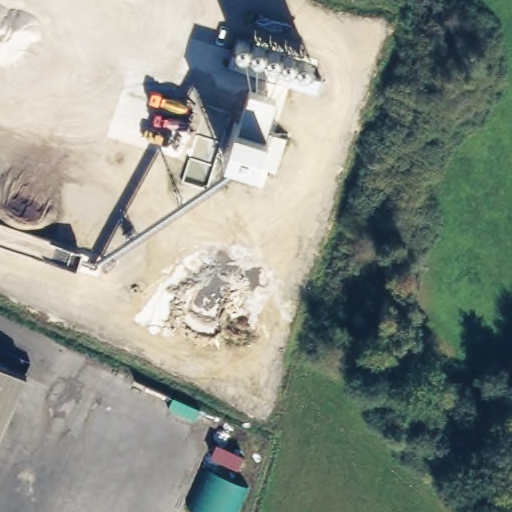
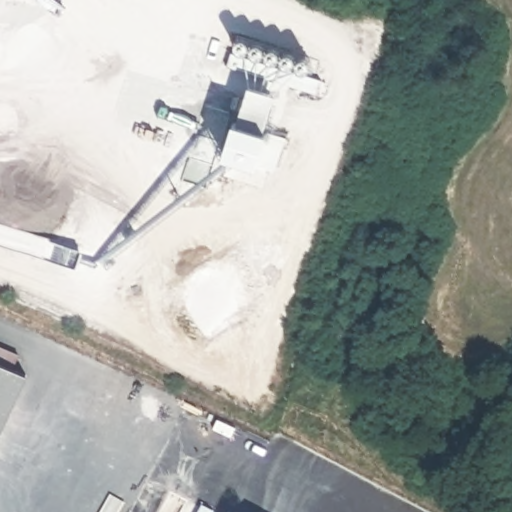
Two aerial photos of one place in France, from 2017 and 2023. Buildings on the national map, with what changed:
unchanged [(242,39),(309,60),(311,62),(311,66),(309,70),(306,71),(301,71),(240,52),(235,49),(235,45),(237,40),(239,40),(242,39)]
unchanged [(265,131),(267,132),(257,167),(222,155),(234,121),(236,122),(249,85),(276,92),(265,131)]
unchanged [(0,359),(30,373),(0,434),(0,359)]
unchanged [(236,512),(195,512),(187,507),(205,469),(247,486),(236,512)]

